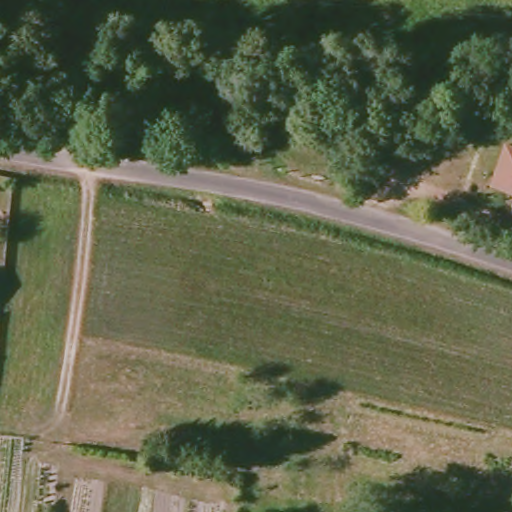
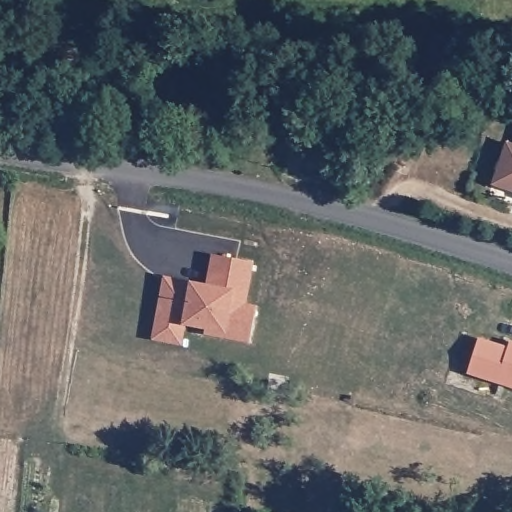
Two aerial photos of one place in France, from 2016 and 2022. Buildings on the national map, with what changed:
unchanged [(503,149),(512,152),(512,197),(489,189),(492,180),(503,149)]
new [(246,304),(256,305),(250,342),(205,334),(205,329),(184,325),(181,344),(151,339),(163,275),(190,280),(206,284),(212,254),(254,262),(246,304)]
new [(480,339),(507,348),(509,341),(512,342),(512,387),(470,374),(480,339)]

